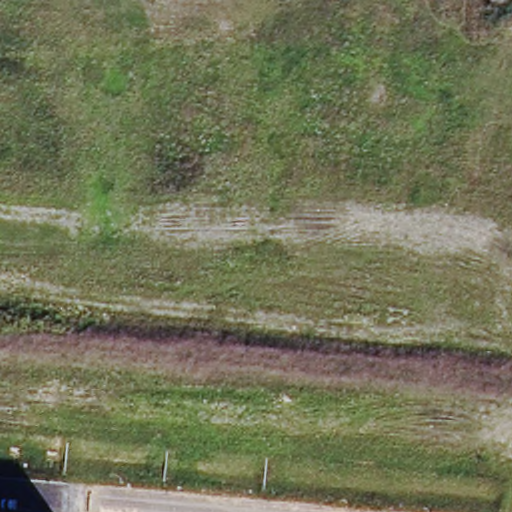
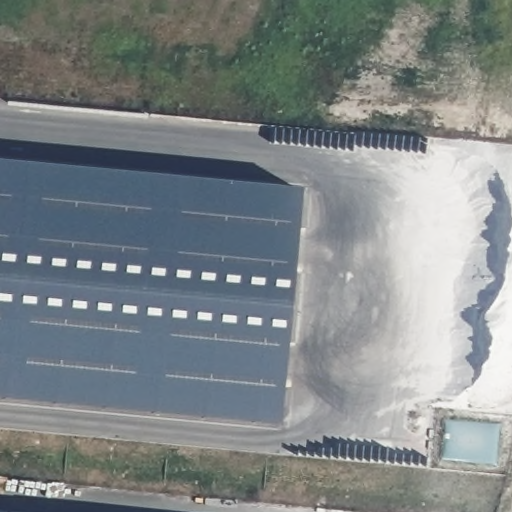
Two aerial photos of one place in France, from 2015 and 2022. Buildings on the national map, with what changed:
new [(297,190),(277,423),(0,397),(0,162),(297,190)]

